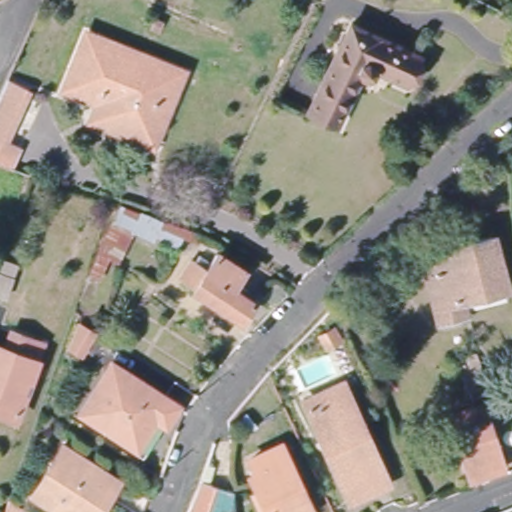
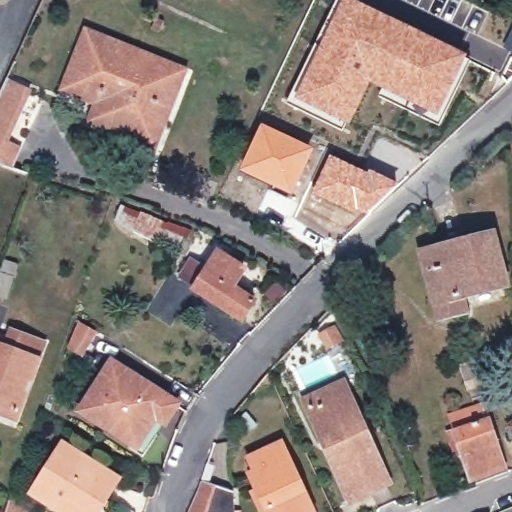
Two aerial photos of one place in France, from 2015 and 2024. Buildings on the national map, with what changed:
new [(347,95),(356,77),(359,70),(363,72),(370,71),(376,64),(407,77),(418,52),(351,20),(330,65),(310,106),(336,119),(333,124),(287,101),(335,0),(353,0),(467,55),(471,58),(438,125),(380,95),(382,89),(370,83),(351,125),(336,117),(347,95)]
unchanged [(351,20),(418,52),(407,77),(376,64),(370,71),(363,72),(359,70),(356,77),(330,65),(351,20)]
unchanged [(102,96),(69,82),(92,27),(187,64),(157,140),(106,120),(96,115),(102,96)]
unchanged [(336,119),(310,106),(330,65),(356,77),(336,119)]
unchanged [(0,151),(0,104),(9,85),(14,75),(32,84),(11,131),(29,140),(20,158),(0,151)]
new [(261,124),(313,147),(292,195),(286,193),(271,185),(239,170),(261,124)]
new [(330,154),(397,184),(385,197),(362,219),(340,208),(310,194),(330,154)]
unchanged [(191,235),(189,242),(159,232),(153,248),(134,241),(135,238),(112,230),(120,210),(191,235)]
unchanged [(493,234),(502,279),(460,292),(463,310),(437,316),(423,252),(493,234)]
unchanged [(240,273),(231,289),(251,302),(239,321),(192,292),(192,290),(177,280),(188,262),(204,272),(214,255),(240,273)]
unchanged [(340,344),(326,350),(321,337),(333,331),(340,344)]
unchanged [(3,332),(34,345),(7,416),(0,413),(0,340),(3,332)]
unchanged [(463,384),(456,357),(472,351),(480,378),(463,384)]
unchanged [(169,394),(141,441),(91,412),(120,364),(169,394)]
unchanged [(350,502),(310,409),(306,400),(342,385),(346,394),(387,485),(350,502)]
unchanged [(483,411),(482,405),(487,403),(510,475),(478,487),(467,453),(462,455),(452,423),(483,411)]
unchanged [(256,487),(250,475),(256,470),(251,457),(278,444),(308,510),(303,512),(267,512),(265,507),(258,510),(249,491),(256,487)]
unchanged [(65,446),(117,484),(105,502),(97,512),(63,512),(34,490),(65,446)]
unchanged [(226,495),(228,512),(192,512),(203,488),(226,495)]
unchanged [(31,508),(29,512),(12,512),(20,499),(31,508)]

